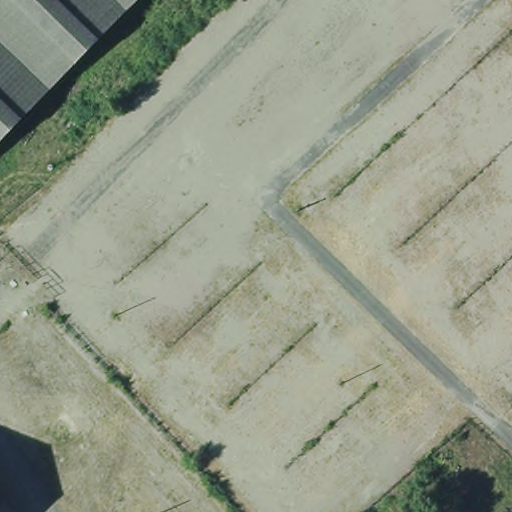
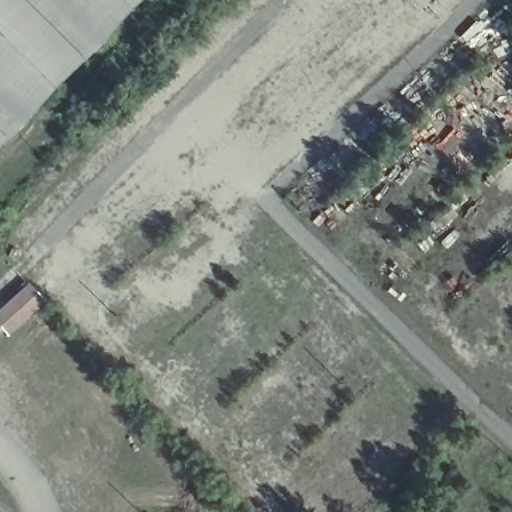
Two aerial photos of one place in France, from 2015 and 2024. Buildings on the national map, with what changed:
unchanged [(0,0),(138,0),(0,141),(0,0)]
new [(45,302),(8,337),(0,328),(0,307),(27,282),(45,302)]

